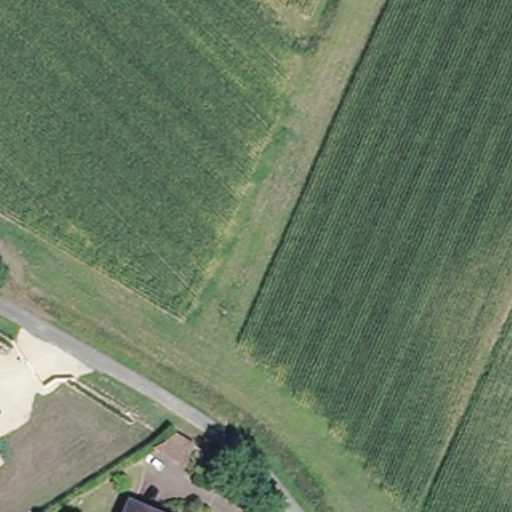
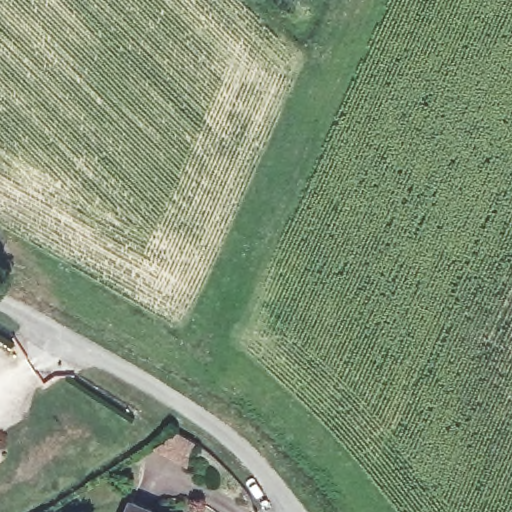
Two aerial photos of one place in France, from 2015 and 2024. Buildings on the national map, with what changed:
unchanged [(182,430),(224,452),(210,479),(155,447),(182,430)]
unchanged [(125,512),(129,504),(146,512),(125,512)]

